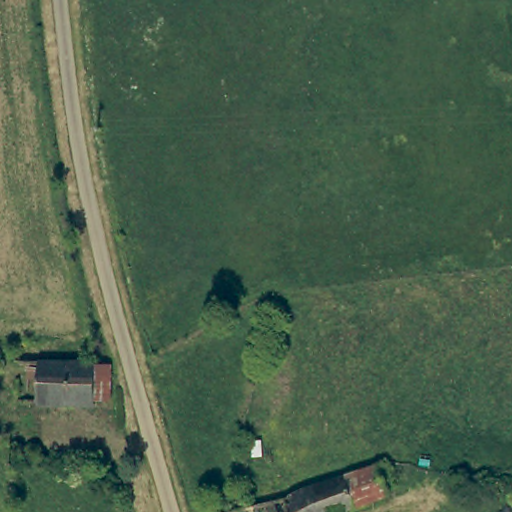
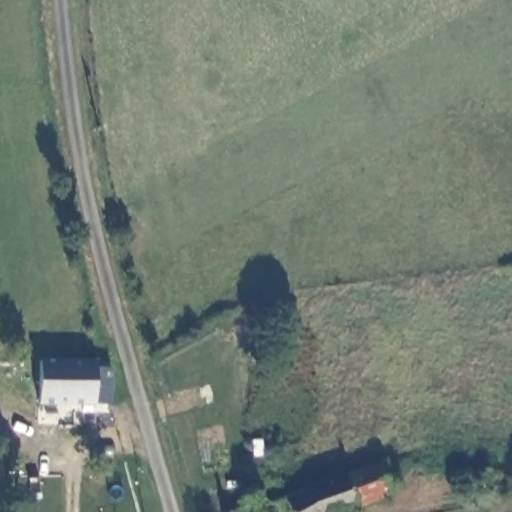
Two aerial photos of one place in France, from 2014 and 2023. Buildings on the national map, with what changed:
unchanged [(100,404),(36,399),(38,358),(100,362),(100,367),(111,367),(113,400),(100,400),(100,404)]
unchanged [(387,486),(392,500),(360,512),(294,512),(289,493),(390,459),(397,480),(387,486)]
unchanged [(450,486),(445,468),(467,460),(475,479),(450,486)]

